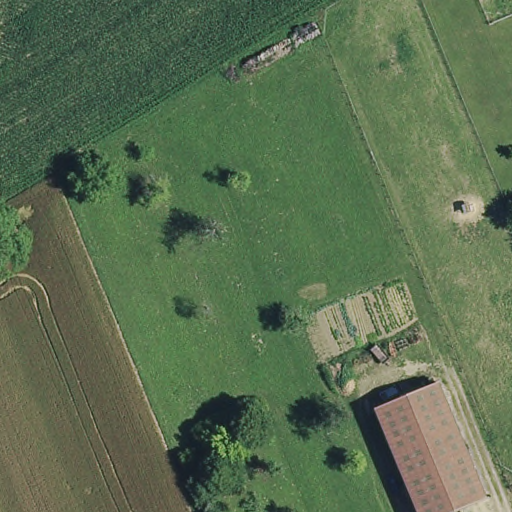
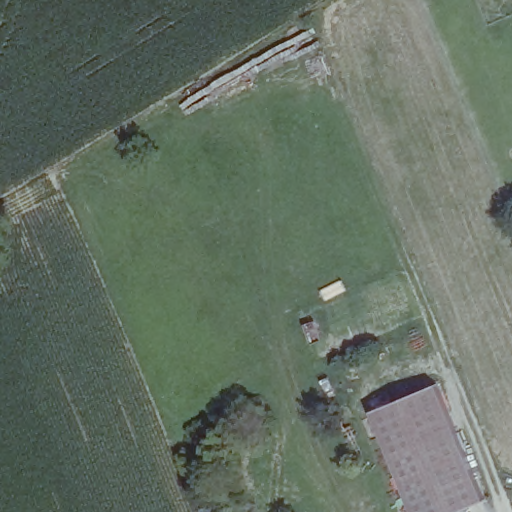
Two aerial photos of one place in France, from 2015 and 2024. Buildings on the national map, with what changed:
unchanged [(488,491),(478,495),(439,512),(424,512),(378,401),(430,380),(439,375),(488,491)]

